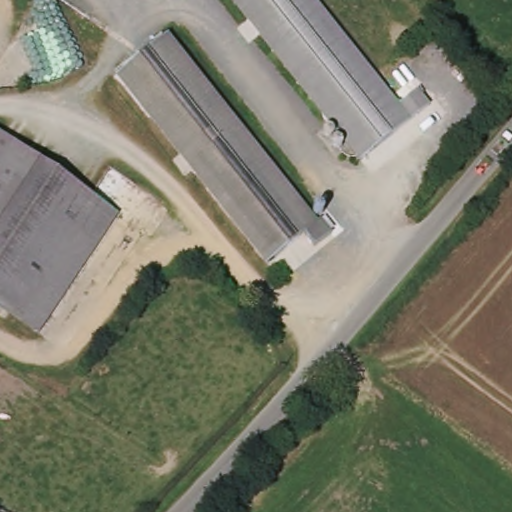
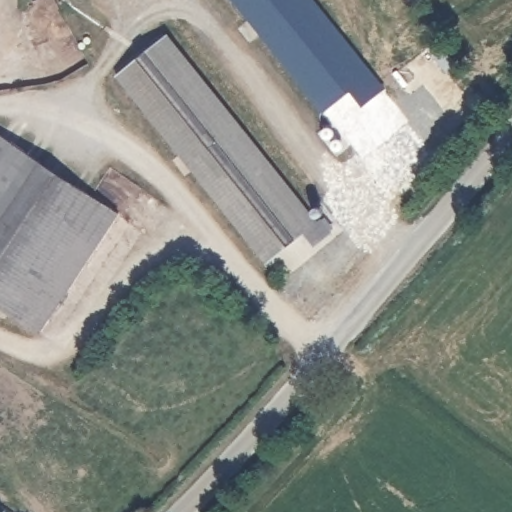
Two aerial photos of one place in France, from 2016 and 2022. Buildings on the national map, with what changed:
unchanged [(418,94),(431,110),(363,163),(230,0),(314,0),(400,107),(418,94)]
unchanged [(115,71),(165,30),(318,222),(324,219),(333,233),(311,249),(300,237),(270,261),(205,184),(195,174),(115,71)]
unchanged [(35,169),(0,220),(0,146),(35,169)]
unchanged [(35,169),(35,167),(116,222),(45,330),(0,301),(0,220),(35,169)]

